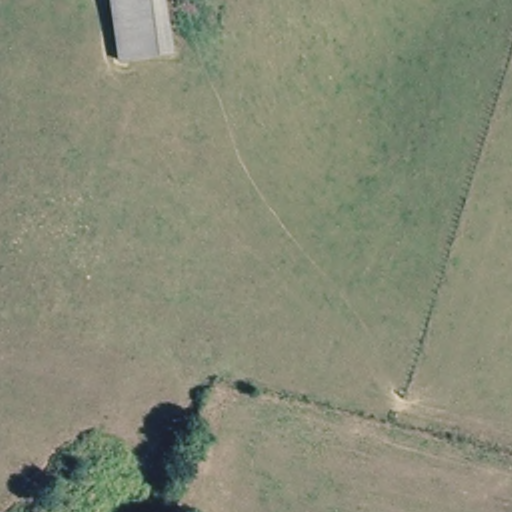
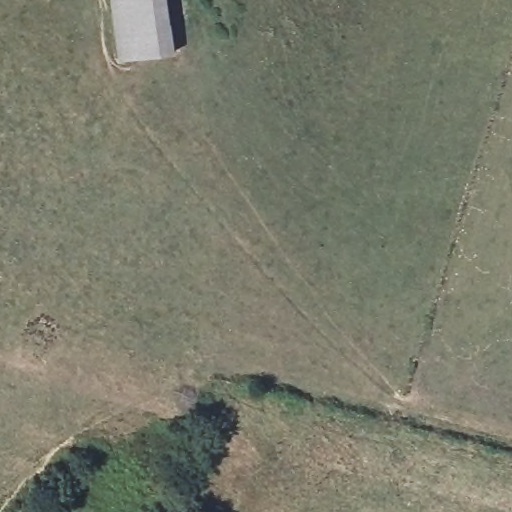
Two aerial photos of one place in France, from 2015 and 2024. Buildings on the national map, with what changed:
unchanged [(108,0),(149,0),(155,59),(116,63),(108,0)]
unchanged [(168,0),(176,56),(155,59),(149,0),(168,0)]

